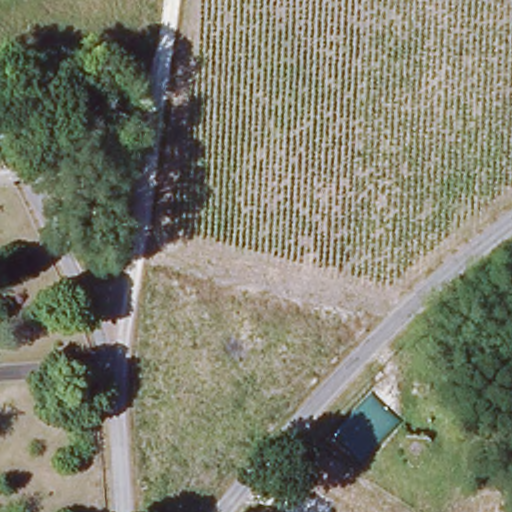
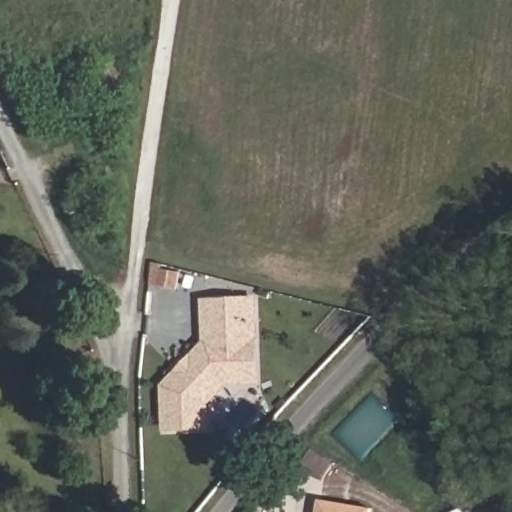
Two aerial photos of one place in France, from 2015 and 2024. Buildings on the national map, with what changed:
new [(226,385),(210,405),(210,431),(164,433),(161,385),(204,343),(201,299),(258,298),(260,384),(226,385)]
new [(371,507),(371,512),(317,512),(318,500),(371,507)]

